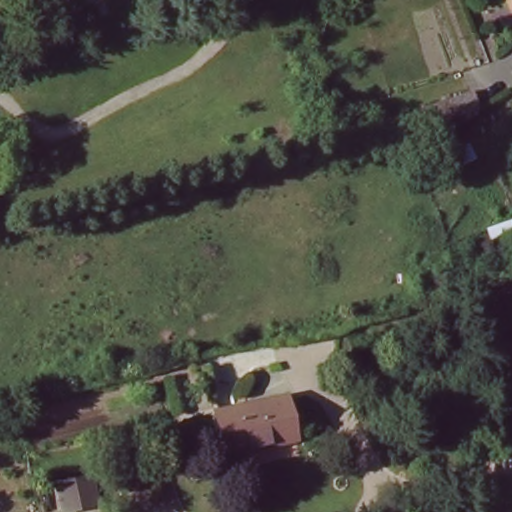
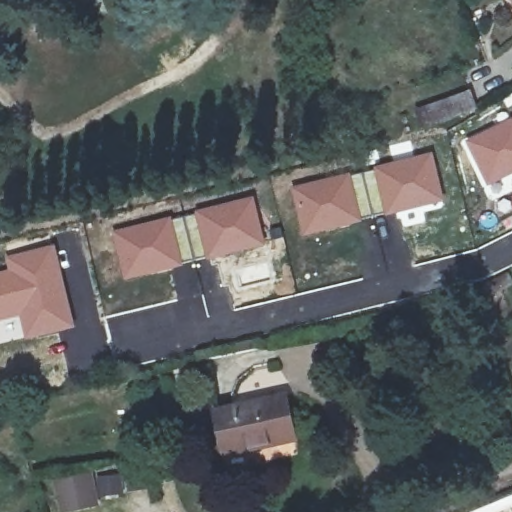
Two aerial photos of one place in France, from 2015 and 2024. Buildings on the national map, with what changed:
unchanged [(482,109),(432,130),(424,114),(476,93),(482,109)]
new [(512,118),(512,175),(487,188),(463,140),(512,118)]
new [(393,160),(389,145),(410,140),(414,155),(432,151),(444,202),(419,209),(384,215),(374,169),(373,167),(393,160)]
new [(374,169),(384,215),(362,222),(351,175),(374,169)]
new [(351,173),(351,175),(362,222),(301,238),(289,187),(351,173)]
new [(253,195),(265,245),(205,259),(194,213),(193,210),(253,195)]
new [(194,213),(205,259),(184,265),(172,219),(194,213)]
new [(171,215),(172,219),(184,265),(123,281),(111,230),(171,215)]
new [(4,256),(55,244),(76,328),(24,340),(18,318),(0,322),(0,271),(7,269),(4,256)]
unchanged [(284,397),(292,438),(224,452),(216,409),(284,397)]
new [(139,490),(99,499),(101,507),(75,512),(60,512),(54,483),(94,474),(109,477),(135,472),(139,490)]

